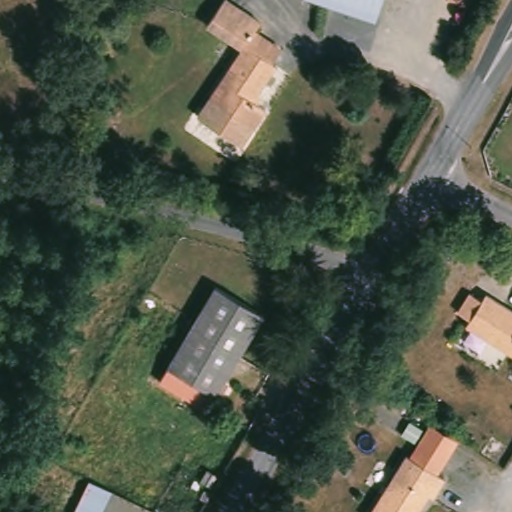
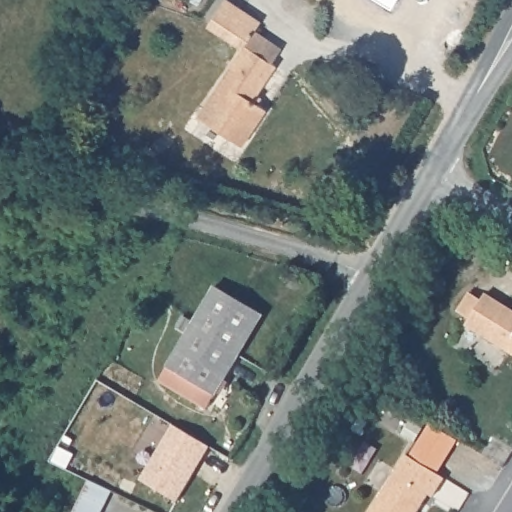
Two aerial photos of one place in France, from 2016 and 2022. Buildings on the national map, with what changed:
unchanged [(285,47),(276,61),(279,63),(255,100),(267,108),(244,144),(200,114),(243,49),(208,27),(224,0),(227,0),(260,22),(257,28),(256,30),(285,47)]
unchanged [(376,23),(316,0),(384,0),(376,23)]
unchanged [(265,314),(212,408),(164,381),(214,287),(265,314)]
unchanged [(454,306),(466,287),(478,295),(481,291),(512,310),(512,355),(461,323),(466,314),(454,306)]
unchanged [(408,452),(428,421),(458,440),(442,473),(408,452)]
new [(172,426),(209,447),(176,501),(139,479),(172,426)]
unchanged [(442,473),(430,492),(425,490),(411,512),(366,512),(404,450),(442,473)]
unchanged [(104,512),(74,512),(85,483),(111,495),(104,512)]

